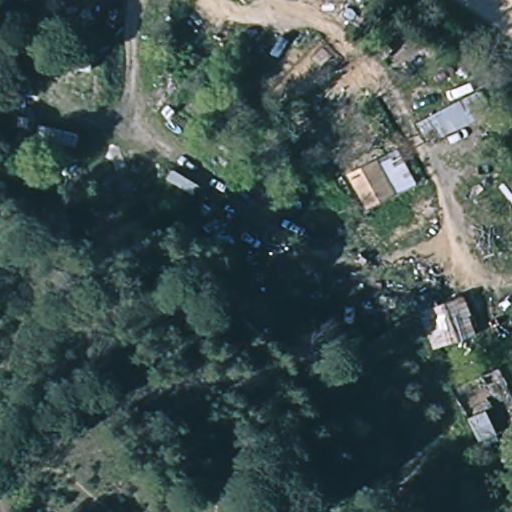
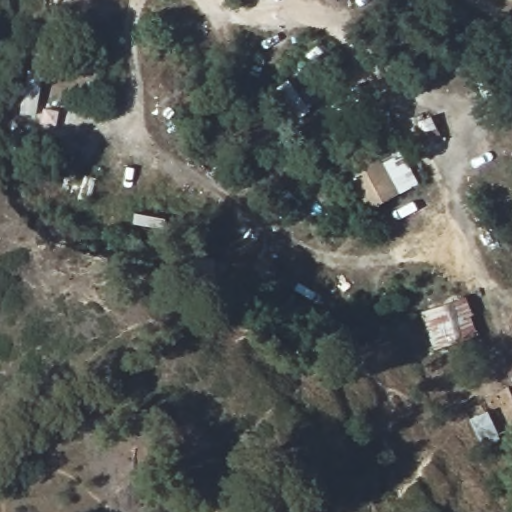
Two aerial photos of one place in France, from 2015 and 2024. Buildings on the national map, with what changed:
unchanged [(442,127),(429,133),(419,114),(430,108),(442,127)]
unchanged [(423,176),(393,191),(376,159),(404,144),(423,176)]
unchanged [(468,288),(477,324),(437,337),(424,301),(468,288)]

